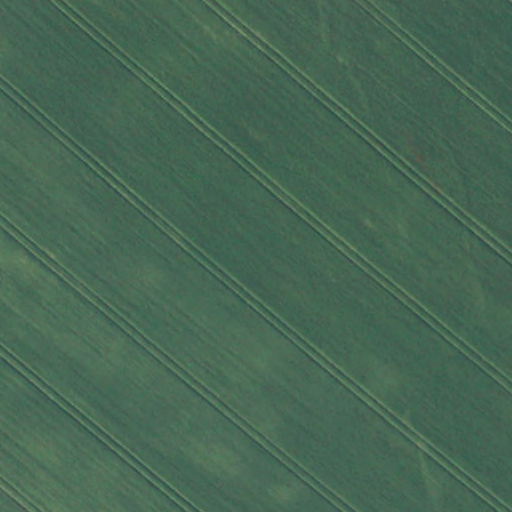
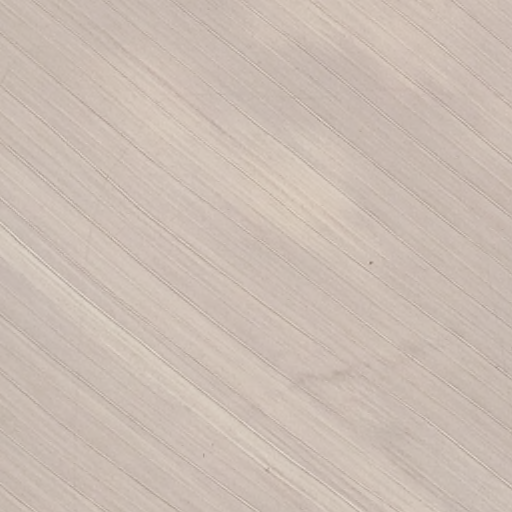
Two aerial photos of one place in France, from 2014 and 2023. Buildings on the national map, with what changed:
[]

